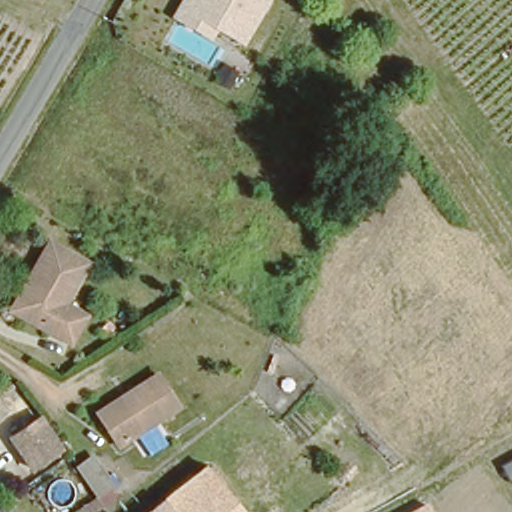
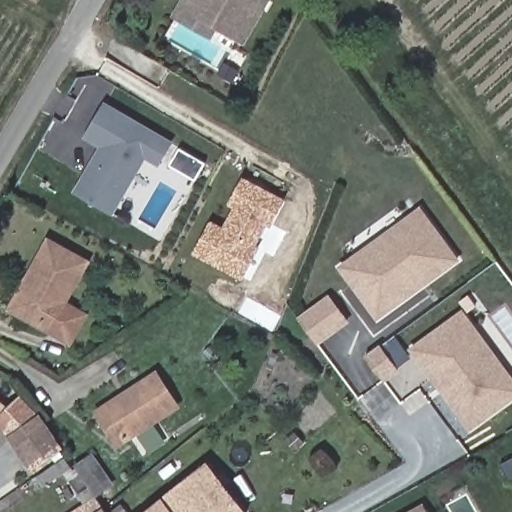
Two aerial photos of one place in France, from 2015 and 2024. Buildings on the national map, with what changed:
unchanged [(218,31),(212,39),(173,18),(181,0),(271,0),(246,46),(218,31)]
new [(99,148),(84,138),(105,101),(173,141),(159,168),(146,160),(113,216),(72,192),(99,148)]
new [(247,274),(242,282),(193,255),(211,221),(222,227),(233,208),(227,205),(242,177),(284,199),(270,230),(267,228),(245,272),(247,274)]
new [(377,322),(337,267),(422,207),(460,261),(377,322)]
unchanged [(53,236),(92,260),(66,302),(50,328),(19,308),(11,303),(31,272),(53,236)]
new [(318,347),(297,317),(330,294),(351,323),(318,347)]
unchanged [(72,343),(49,331),(66,302),(88,313),(72,343)]
new [(512,376),(512,401),(469,431),(409,349),(464,310),(512,376)]
unchanged [(176,405),(114,441),(97,413),(94,408),(127,389),(157,371),(176,405)]
unchanged [(7,407),(0,415),(0,400),(7,407)]
unchanged [(40,412),(62,449),(27,470),(8,434),(40,412)]
unchanged [(77,464),(94,453),(115,486),(111,488),(118,499),(106,508),(98,496),(77,464)]
unchanged [(206,460),(245,511),(244,512),(138,512),(206,460)]
unchanged [(98,496),(109,512),(76,512),(98,496)]
unchanged [(430,512),(409,512),(425,503),(430,512)]

